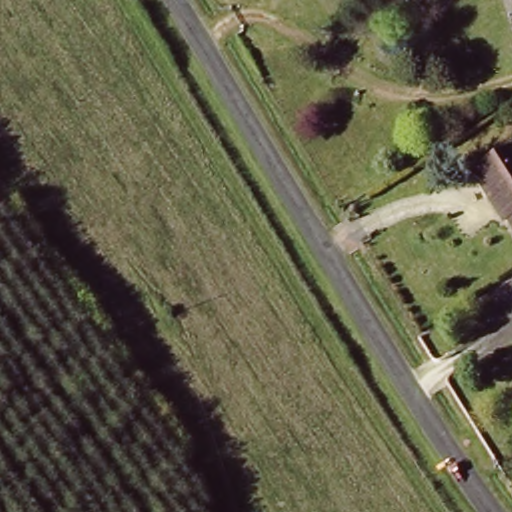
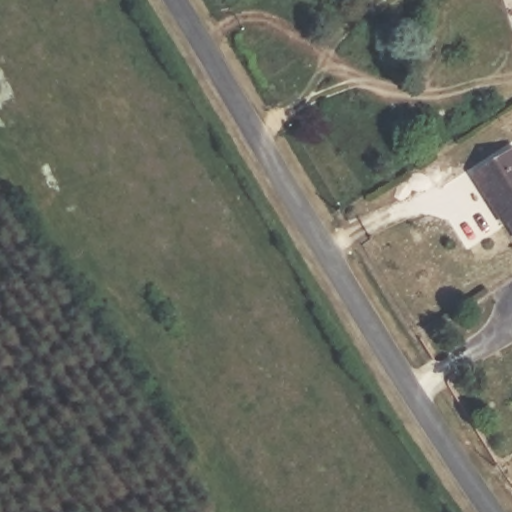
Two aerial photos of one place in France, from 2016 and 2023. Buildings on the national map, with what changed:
unchanged [(512,162),(512,227),(483,180),(512,162)]

